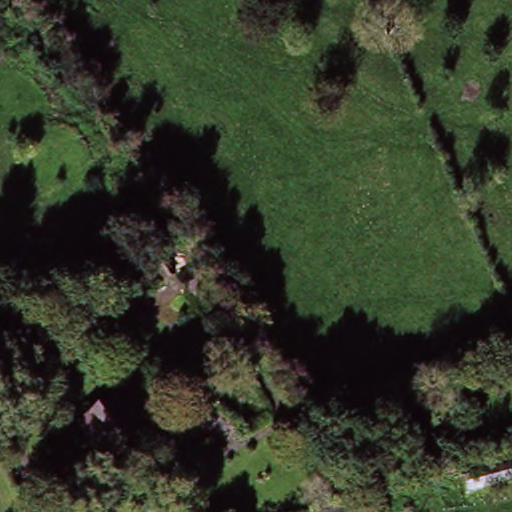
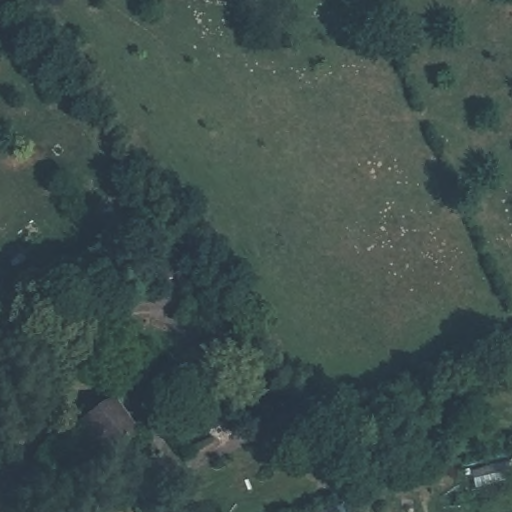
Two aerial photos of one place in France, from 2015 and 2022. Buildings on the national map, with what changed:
unchanged [(114,450),(100,432),(90,440),(79,424),(109,401),(134,436),(114,450)]

